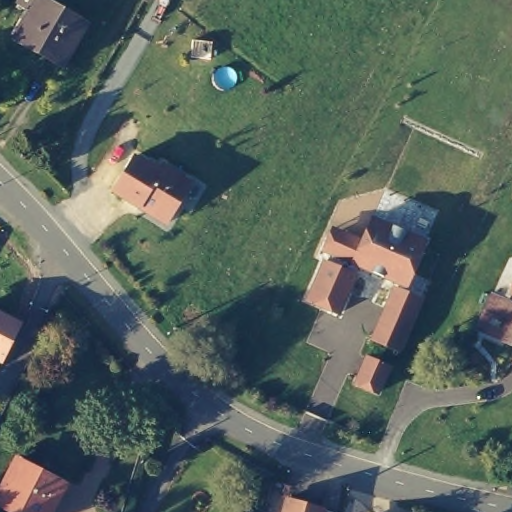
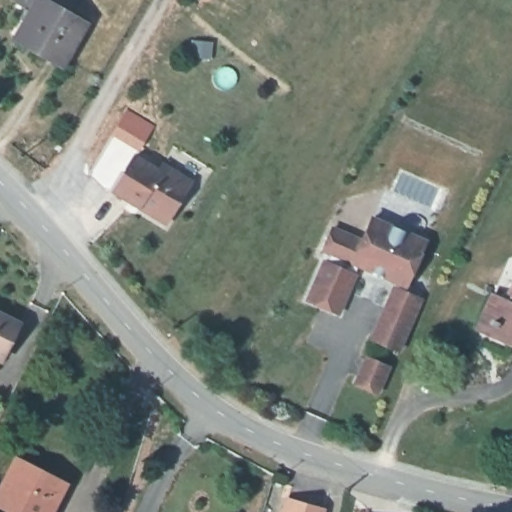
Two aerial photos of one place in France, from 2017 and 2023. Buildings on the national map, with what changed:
unchanged [(66,57),(21,29),(36,0),(56,0),(88,18),(66,57)]
unchanged [(168,226),(110,191),(135,154),(158,166),(161,160),(194,181),(168,226)]
unchanged [(328,253),(321,250),(333,225),(360,237),(371,214),(430,238),(406,289),(360,270),(335,317),(304,301),(328,253)]
unchanged [(503,296),(512,276),(512,346),(474,328),(488,290),(503,296)]
unchanged [(392,288),(422,300),(401,353),(371,339),(392,288)]
unchanged [(19,318),(0,358),(0,309),(19,318)]
unchanged [(365,353),(393,365),(379,395),(352,383),(365,353)]
unchanged [(14,449),(74,479),(56,512),(13,512),(0,506),(0,480),(14,449)]
unchanged [(320,506),(319,512),(282,512),(285,497),(320,506)]

